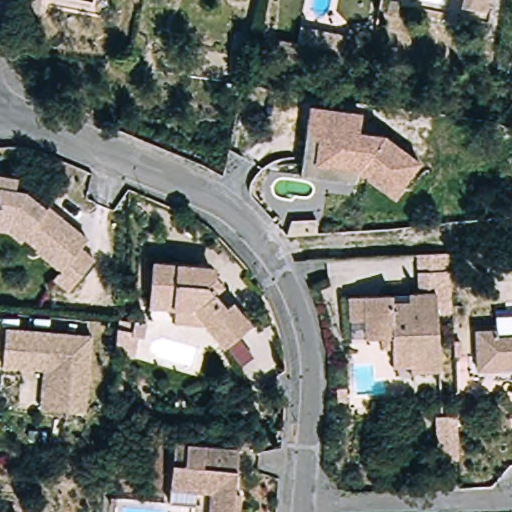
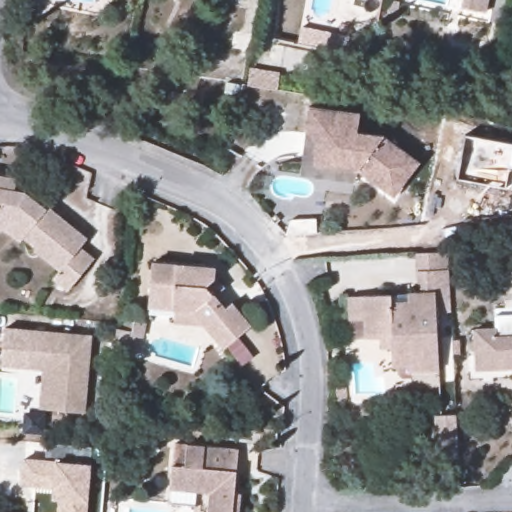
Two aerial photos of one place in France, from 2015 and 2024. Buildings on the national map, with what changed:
unchanged [(464,0),(487,0),(485,11),(463,7),(464,0)]
new [(302,26),(348,35),(340,50),(299,43),(302,26)]
unchanged [(360,112),(358,131),(383,135),(419,162),(393,196),(360,171),(352,181),(300,175),(310,105),(360,112)]
new [(512,143),(512,188),(505,188),(458,179),(465,135),(512,143)]
unchanged [(10,199),(21,198),(41,215),(43,212),(82,244),(75,253),(89,265),(64,296),(49,284),(56,275),(32,255),(33,254),(20,242),(16,246),(3,236),(0,236),(0,187),(10,187),(10,199)]
unchanged [(371,336),(355,337),(355,319),(340,320),(339,296),(354,295),(411,292),(409,252),(439,250),(442,310),(426,311),(430,368),(402,369),(402,363),(384,364),(383,347),(372,347),(371,336)]
unchanged [(148,304),(144,304),(148,261),(201,265),(208,274),(200,281),(219,303),(224,298),(243,320),(218,343),(201,321),(147,317),(148,304)]
unchanged [(44,374),(2,370),(5,333),(91,341),(84,418),(47,414),(40,414),(44,374)]
unchanged [(474,382),(473,368),(472,341),(492,341),(492,349),(512,348),(512,372),(492,375),(512,374),(512,380),(474,382)]
unchanged [(435,463),(432,419),(453,418),(455,461),(435,463)]
new [(18,489),(20,464),(41,465),(42,448),(87,452),(82,512),(54,512),(55,503),(49,502),(50,491),(18,489)]
unchanged [(236,497),(241,498),(240,512),(217,512),(219,495),(172,493),(173,470),(175,448),(188,449),(239,452),(236,497)]

